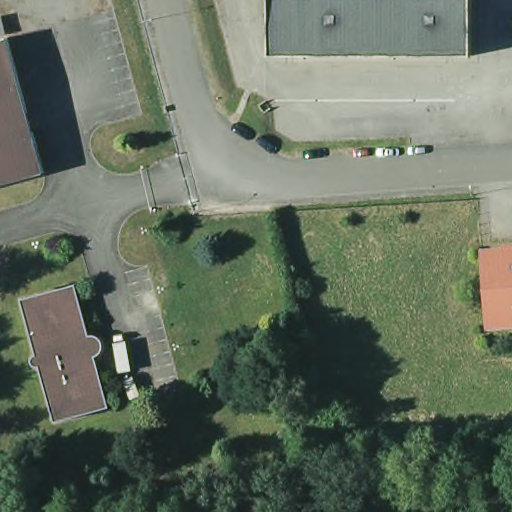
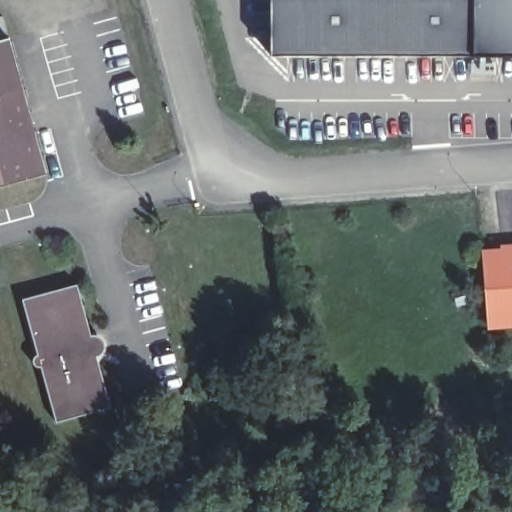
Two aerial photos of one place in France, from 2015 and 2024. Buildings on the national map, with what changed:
unchanged [(274,54),(272,0),(473,0),(473,54),(274,54)]
new [(473,54),(473,0),(512,0),(512,54),(473,54)]
unchanged [(47,173),(0,186),(0,40),(10,37),(47,173)]
unchanged [(493,254),(512,252),(512,327),(499,328),(493,254)]
unchanged [(113,402),(60,417),(46,364),(35,357),(42,347),(27,296),(80,281),(113,402)]

